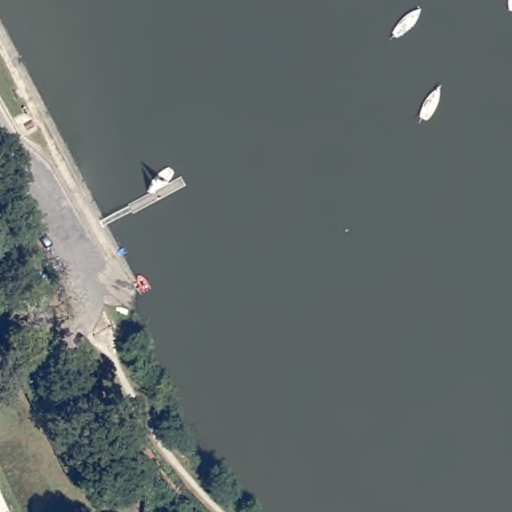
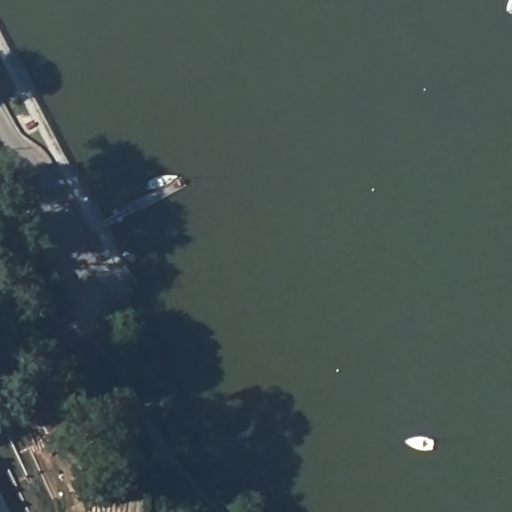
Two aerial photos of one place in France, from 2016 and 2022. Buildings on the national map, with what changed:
unchanged [(2,185),(3,189),(3,195),(0,200),(0,183),(2,185)]

